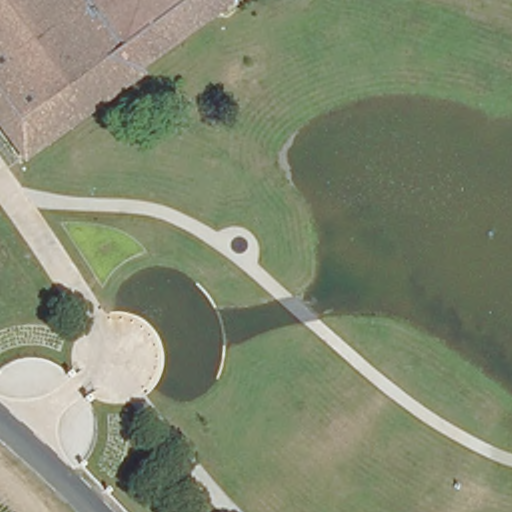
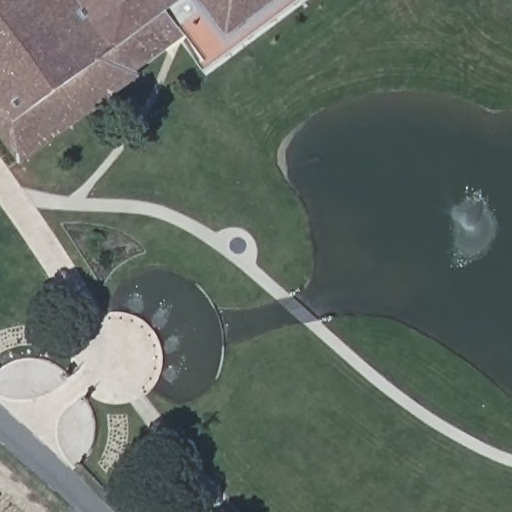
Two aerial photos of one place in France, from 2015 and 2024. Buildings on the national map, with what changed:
unchanged [(210,9),(185,27),(129,66),(132,72),(9,159),(0,148),(0,0),(203,0),(210,9)]
new [(210,9),(203,0),(301,0),(212,66),(185,27),(210,9)]

